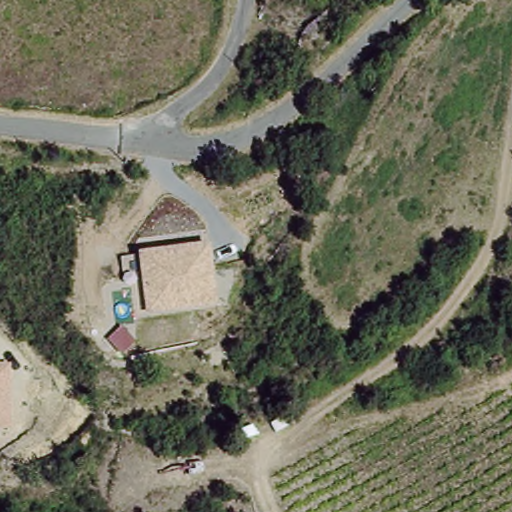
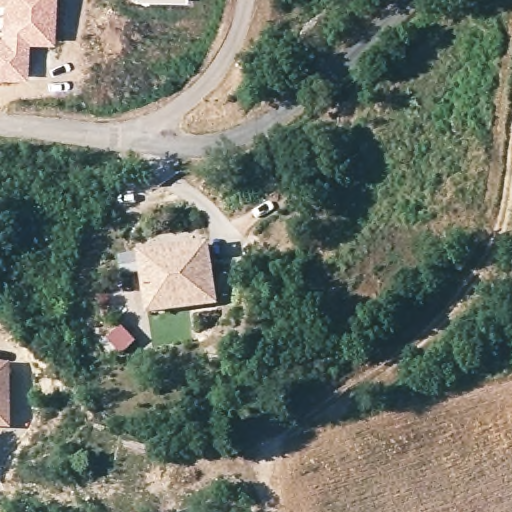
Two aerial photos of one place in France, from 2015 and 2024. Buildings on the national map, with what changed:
new [(52,43),(27,43),(25,78),(0,78),(0,0),(52,0),(52,43)]
new [(186,2),(133,1),(133,0),(186,0),(186,2)]
unchanged [(210,242),(218,303),(146,313),(138,252),(210,242)]
unchanged [(11,427),(0,427),(0,362),(10,362),(11,427)]

